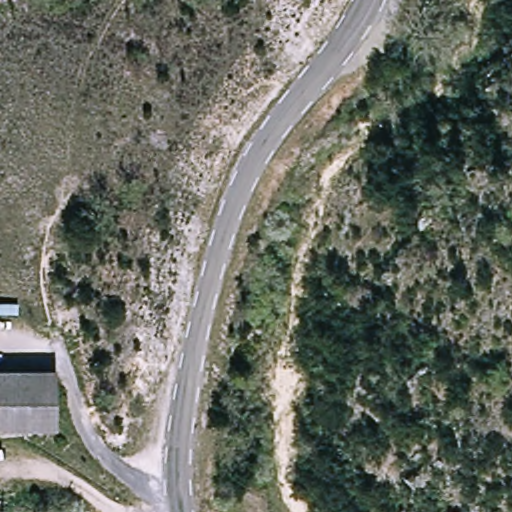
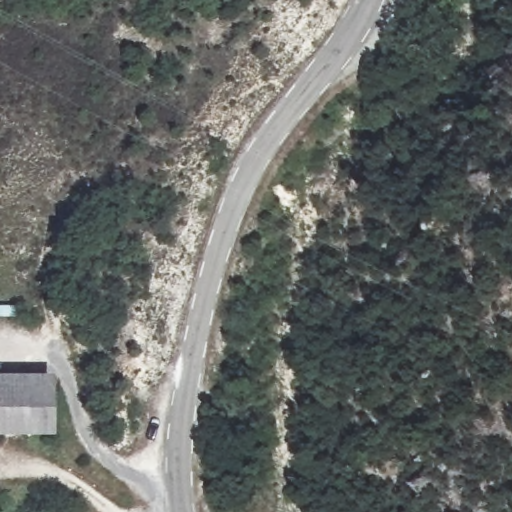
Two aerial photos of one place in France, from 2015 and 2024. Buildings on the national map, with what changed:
unchanged [(51,375),(54,433),(0,435),(0,379),(51,375)]

